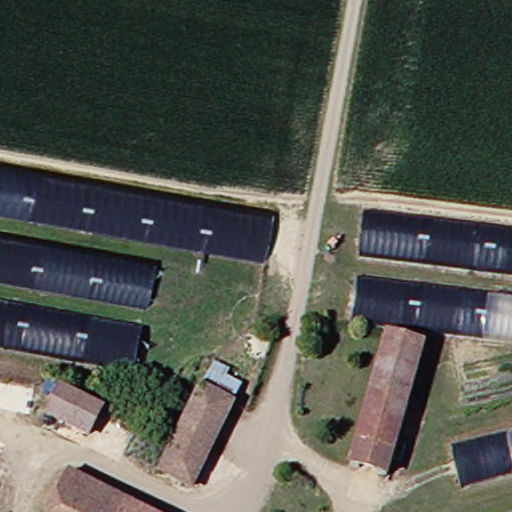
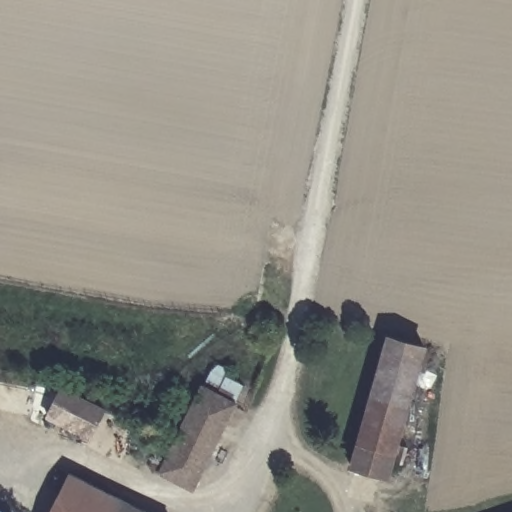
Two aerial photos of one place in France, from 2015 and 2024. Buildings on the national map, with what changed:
demolished [(274,215),(265,261),(0,212),(0,162),(274,215)]
demolished [(352,212),(512,233),(512,278),(343,258),(352,212)]
demolished [(136,304),(0,280),(0,238),(141,263),(136,304)]
demolished [(348,278),(512,298),(512,346),(339,323),(348,278)]
demolished [(120,370),(0,349),(0,304),(130,328),(120,370)]
unchanged [(410,342),(382,480),(346,472),(373,336),(410,342)]
unchanged [(151,469),(194,386),(211,394),(220,379),(234,388),(183,487),(151,469)]
unchanged [(50,387),(92,409),(78,437),(40,416),(50,387)]
demolished [(436,444),(512,427),(512,474),(449,488),(436,444)]
unchanged [(63,471),(140,512),(40,512),(63,471)]
new [(8,512),(0,512),(0,508),(8,512)]

